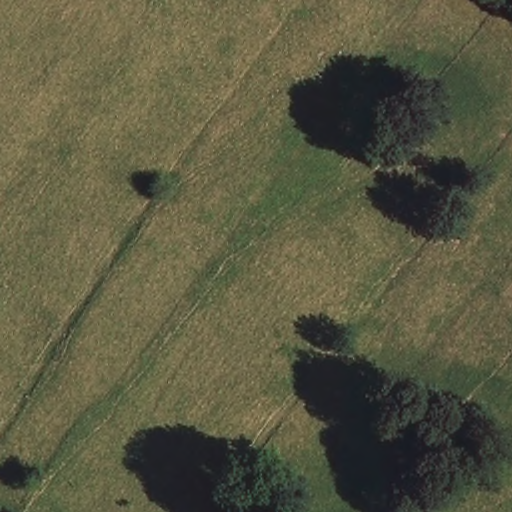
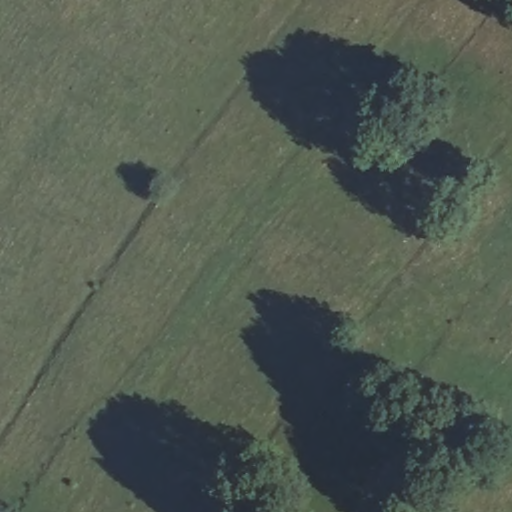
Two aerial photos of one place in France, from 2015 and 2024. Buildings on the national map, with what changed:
[]

